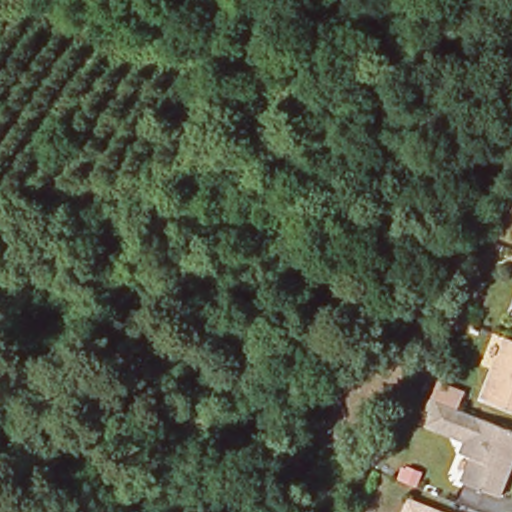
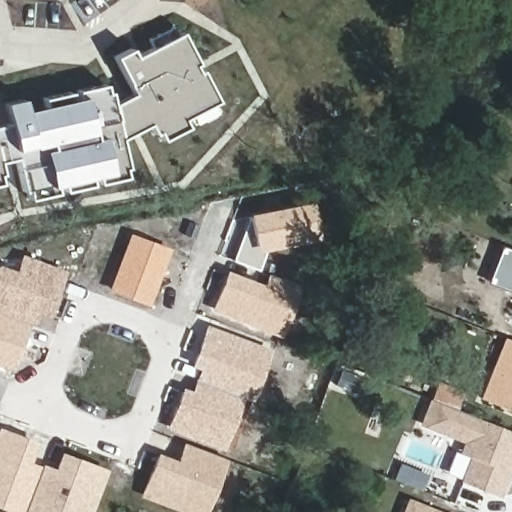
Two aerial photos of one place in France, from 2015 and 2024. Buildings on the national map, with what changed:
new [(4,103),(23,99),(25,110),(44,107),(42,97),(70,91),(71,99),(77,97),(76,89),(104,84),(106,92),(109,91),(112,102),(112,104),(130,95),(112,58),(129,49),(133,58),(152,48),(147,39),(173,27),(177,35),(181,33),(196,63),(194,64),(197,71),(200,69),(216,101),(214,103),(218,110),(192,124),(188,116),(182,120),(186,127),(160,139),(156,132),(153,134),(148,124),(121,139),(127,168),(123,168),(125,176),(97,182),(95,175),(90,176),(91,184),(64,190),(62,182),(56,184),(57,191),(30,197),(28,189),(22,190),(15,158),(0,161),(0,124),(8,122),(4,103)]
new [(0,174),(0,161),(3,174),(0,174)]
new [(0,184),(0,174),(1,184),(0,184)]
new [(248,215),(310,202),(316,239),(266,250),(258,270),(232,259),(248,215)]
new [(148,307),(107,291),(128,234),(170,248),(148,307)]
new [(38,314),(34,325),(28,323),(13,371),(0,366),(0,265),(1,264),(17,270),(21,254),(66,270),(51,319),(38,314)]
new [(226,270),(264,284),(266,274),(298,289),(279,337),(210,310),(226,270)]
new [(197,369),(190,367),(205,326),(271,349),(251,403),(242,399),(223,450),(165,428),(182,387),(190,390),(197,369)]
unchanged [(512,339),(512,404),(483,392),(492,368),(505,336),(512,339)]
new [(472,419),(465,437),(470,456),(456,452),(460,443),(419,426),(437,381),(466,393),(459,409),(474,415),(472,419)]
unchanged [(491,421),(512,430),(512,459),(498,495),(460,480),(470,456),(465,437),(474,415),(491,421)]
new [(107,470),(91,512),(0,512),(0,427),(38,442),(31,460),(53,469),(59,451),(107,470)]
new [(207,512),(179,512),(138,496),(158,453),(176,461),(183,442),(228,460),(207,512)]
unchanged [(403,512),(408,500),(438,512),(403,512)]

